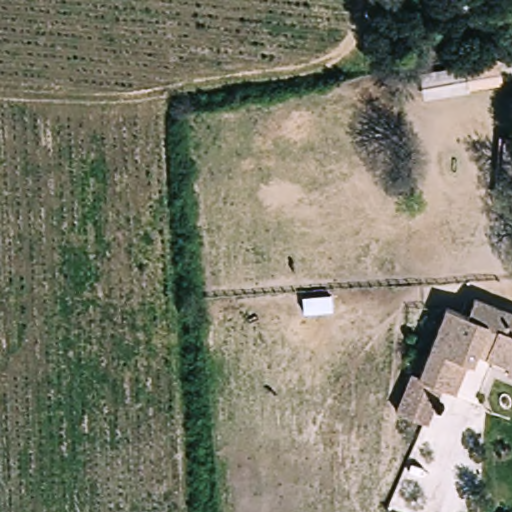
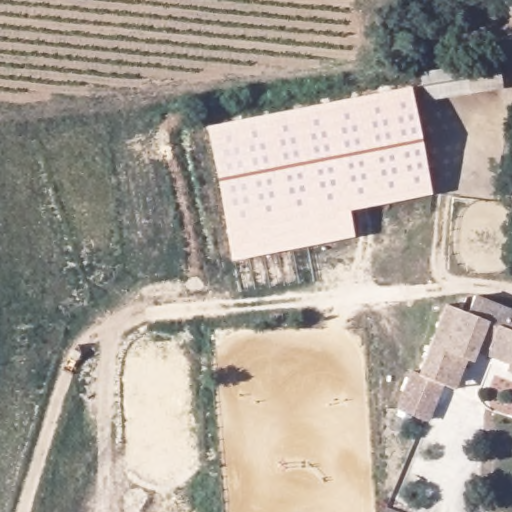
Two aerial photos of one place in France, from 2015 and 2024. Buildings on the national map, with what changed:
unchanged [(504,83),(471,88),(471,90),(471,92),(427,98),(424,70),(500,58),(504,83)]
new [(354,237),(232,261),(206,127),(411,88),(432,194),(349,211),(354,237)]
unchanged [(419,376),(449,305),(469,313),(477,297),(512,311),(512,364),(511,366),(509,365),(477,352),(472,363),(466,360),(454,391),(441,385),(419,376)]
unchanged [(509,365),(512,362),(512,374),(506,372),(509,365)]
unchanged [(426,422),(397,410),(412,371),(420,374),(419,376),(441,385),(426,422)]

